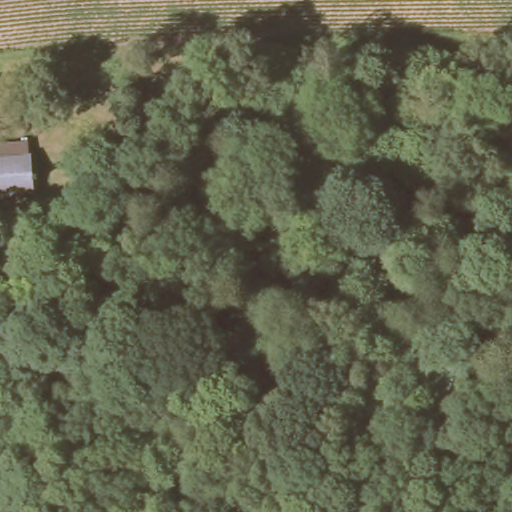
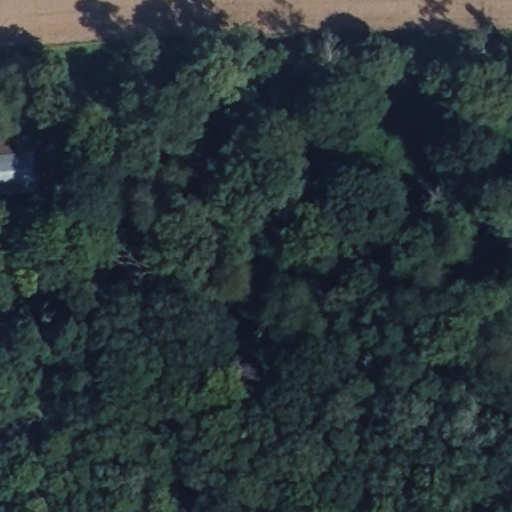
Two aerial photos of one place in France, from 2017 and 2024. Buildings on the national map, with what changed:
unchanged [(40,195),(0,202),(0,140),(33,132),(40,195)]

